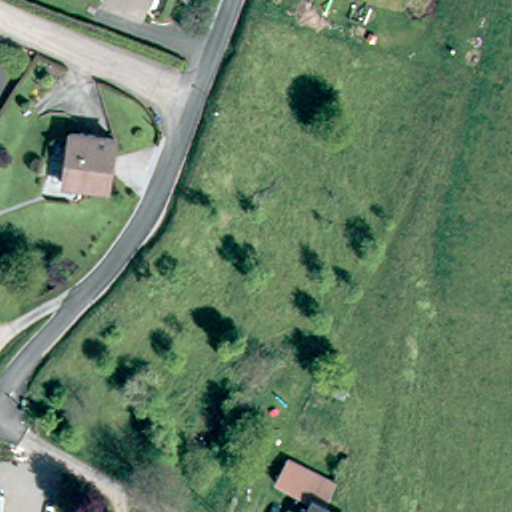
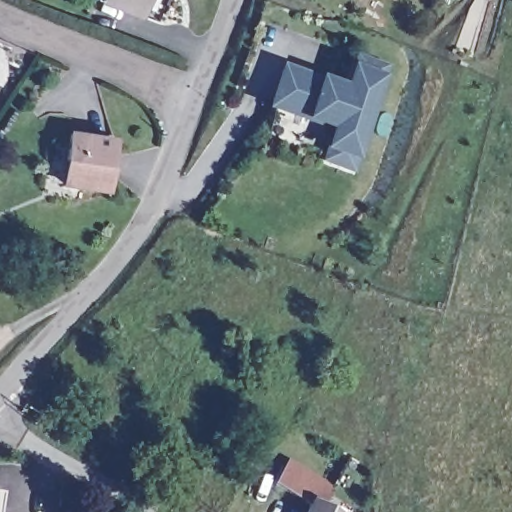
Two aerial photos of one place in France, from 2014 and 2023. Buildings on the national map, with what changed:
unchanged [(146,7),(128,0),(149,0),(146,7)]
new [(389,64),(386,76),(360,162),(356,173),(322,164),(326,153),(332,131),(306,125),(268,112),(282,66),(320,78),(346,86),(352,66),(357,54),(389,64)]
unchanged [(61,155),(56,154),(60,130),(108,135),(103,187),(58,182),(61,155)]
unchanged [(273,486),(282,462),(333,483),(323,508),(331,512),(301,512),(305,500),(273,486)]
unchanged [(3,512),(0,512),(0,490),(5,490),(3,512)]

